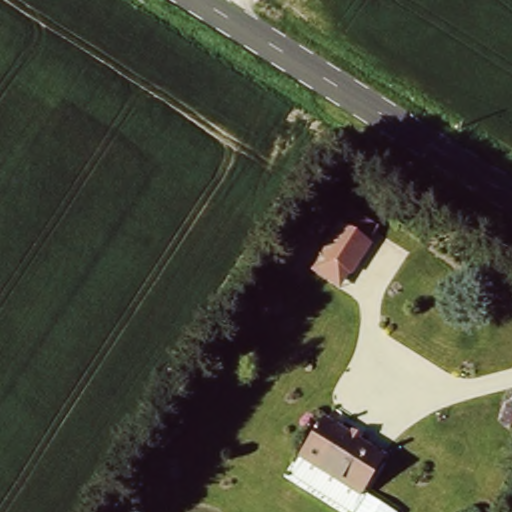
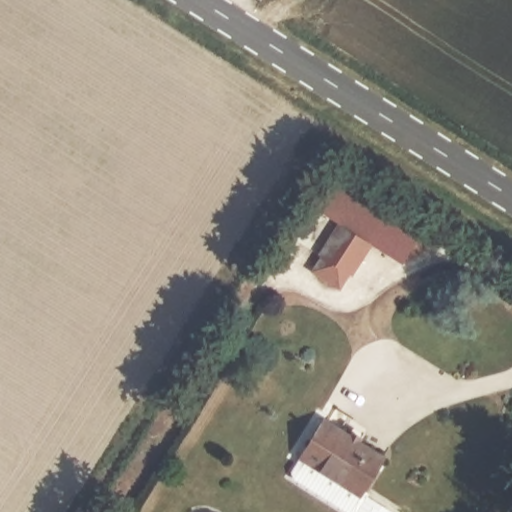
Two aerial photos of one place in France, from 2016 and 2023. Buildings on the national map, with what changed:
unchanged [(351,204),(387,222),(348,291),(313,271),(351,204)]
unchanged [(382,461),(358,499),(298,460),(323,422),(382,461)]

